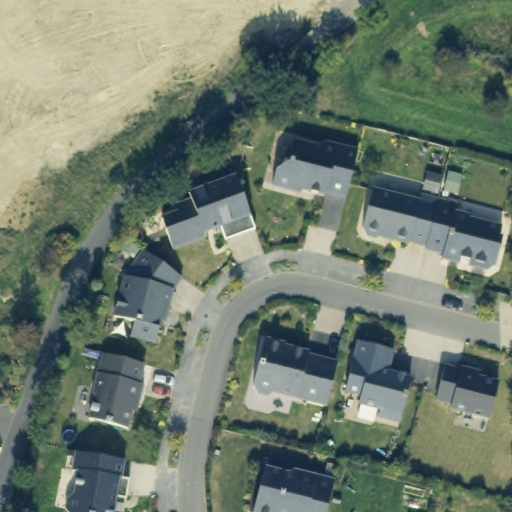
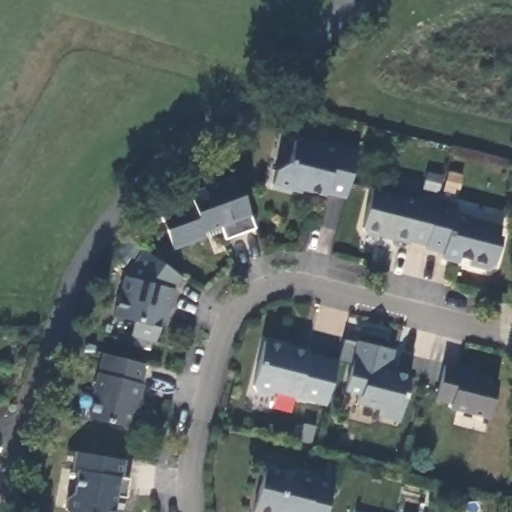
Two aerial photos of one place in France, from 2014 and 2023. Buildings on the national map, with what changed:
unchanged [(333,196),(333,199),(303,191),(302,194),(278,188),(282,173),(295,166),(301,144),(324,150),(332,144),(362,152),(350,200),(333,196)]
unchanged [(237,172),(257,226),(227,237),(222,223),(211,227),(205,229),(207,234),(175,246),(163,215),(179,209),(177,202),(193,196),(190,190),(237,172)]
unchanged [(411,242),(410,246),(393,241),(394,237),(384,235),(379,239),(368,236),(364,229),(374,191),(420,202),(422,197),(438,201),(426,246),(411,242)]
unchanged [(459,206),(457,214),(472,217),(472,221),(503,228),(500,238),(503,239),(496,267),(490,271),(470,266),(472,261),(462,258),(461,263),(444,260),(445,254),(425,250),(426,246),(438,201),(459,206)]
unchanged [(176,293),(169,319),(165,317),(158,346),(134,339),(137,326),(116,321),(128,277),(146,254),(185,281),(176,293)]
unchanged [(278,388),(273,392),(260,388),(256,382),(267,337),(312,348),(311,351),(338,358),(327,401),(278,388)]
unchanged [(361,342),(390,350),(384,371),(413,378),(402,422),(381,417),(383,410),(362,405),(364,396),(348,392),(361,342)]
unchanged [(136,387),(141,388),(136,407),(132,405),(126,431),(87,422),(93,397),(91,397),(101,357),(141,367),(136,387)]
unchanged [(447,367),(462,371),(463,368),(482,373),(481,378),(500,382),(491,419),(453,409),(454,405),(438,401),(447,367)]
unchanged [(121,482),(130,483),(126,502),(116,501),(115,512),(66,512),(67,502),(74,497),(78,475),(72,475),(75,461),(67,460),(68,455),(76,456),(125,464),(121,482)]
unchanged [(269,468),(292,475),(298,471),(336,481),(328,512),(257,512),(269,468)]

